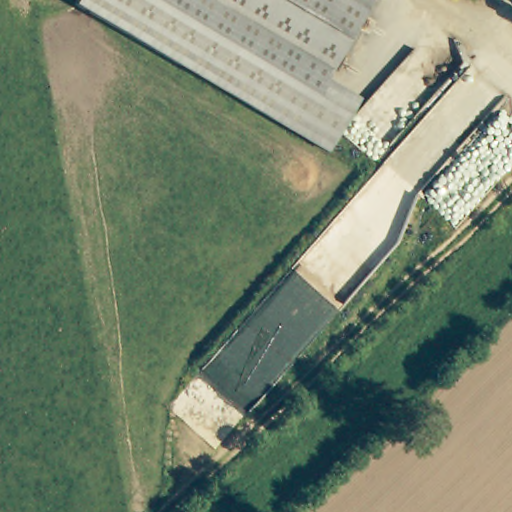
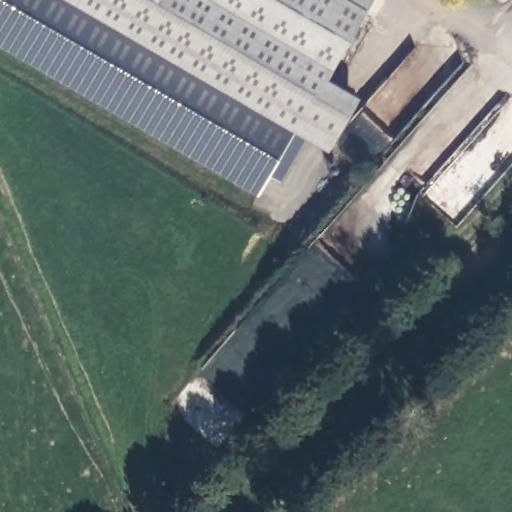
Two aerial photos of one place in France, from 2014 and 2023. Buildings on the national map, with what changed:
new [(286,134),(302,144),(280,181),(270,174),(257,195),(0,45),(0,0),(74,0),(70,7),(286,134)]
unchanged [(70,7),(74,0),(364,0),(309,95),(286,134),(70,7)]
unchanged [(309,95),(342,115),(319,154),(286,134),(309,95)]

